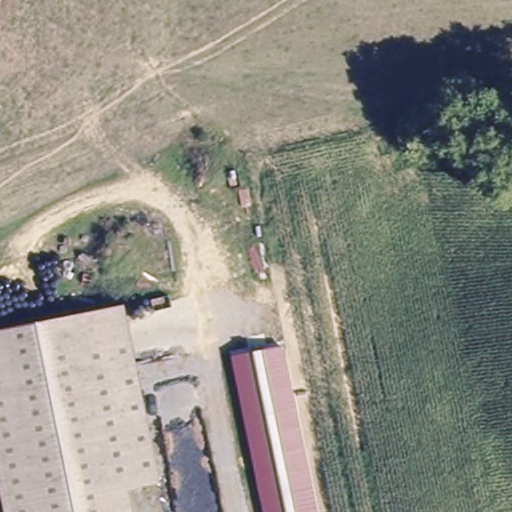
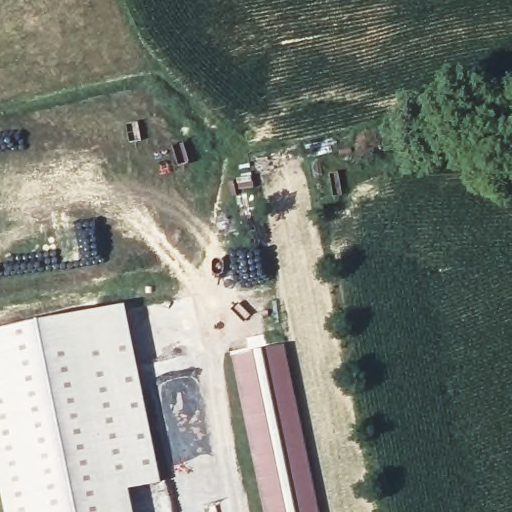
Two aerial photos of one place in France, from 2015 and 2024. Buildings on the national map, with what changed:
unchanged [(108,512),(4,512),(0,493),(0,332),(124,308),(158,485),(125,491),(105,495),(108,512)]
unchanged [(319,512),(263,512),(230,355),(283,345),(319,512)]
unchanged [(108,512),(105,495),(125,491),(129,512),(108,512)]

